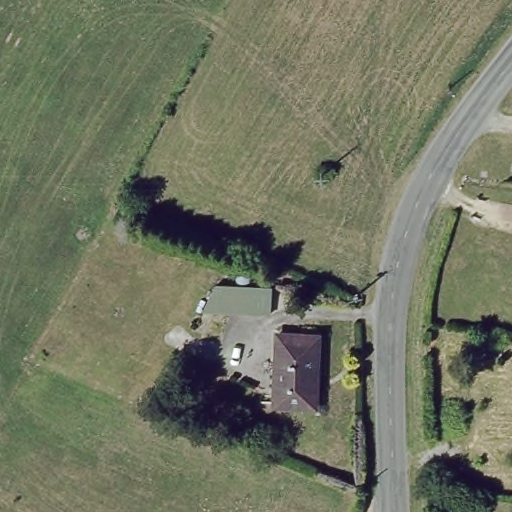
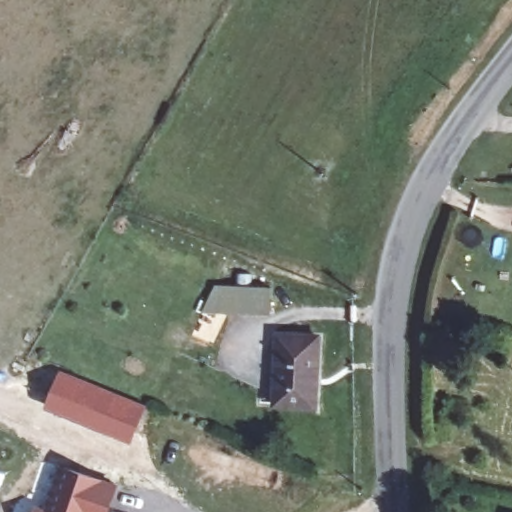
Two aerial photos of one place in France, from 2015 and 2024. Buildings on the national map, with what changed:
unchanged [(268,287),(262,315),(207,301),(220,275),(268,287)]
unchanged [(315,327),(314,395),(273,395),(275,326),(315,327)]
new [(60,370),(147,405),(132,443),(45,408),(60,370)]
new [(34,505),(45,508),(59,465),(118,485),(109,512),(31,512),(34,505)]

